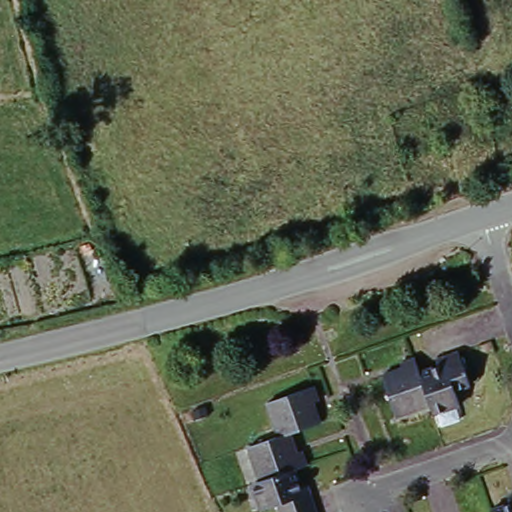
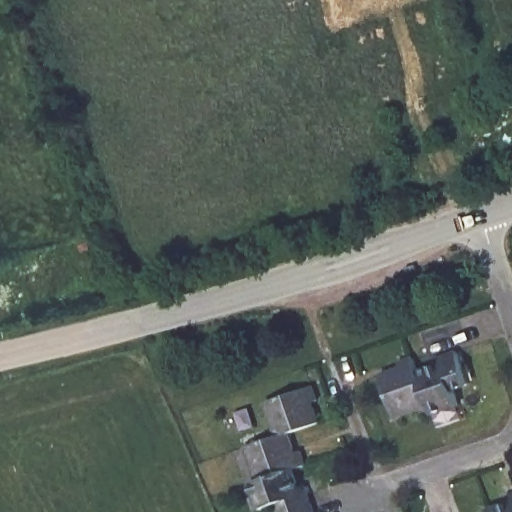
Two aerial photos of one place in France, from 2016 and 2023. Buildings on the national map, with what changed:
unchanged [(469,386),(454,393),(458,406),(433,415),(429,407),(397,417),(381,377),(401,370),(401,363),(414,360),(419,373),(438,366),(436,360),(458,352),(469,386)]
unchanged [(317,403),(310,407),(315,424),(286,434),(292,450),(299,448),(304,465),(292,470),(298,487),(306,486),(315,512),(278,512),(275,506),(260,511),(251,485),(258,482),(246,448),(277,436),(266,402),(311,387),(317,403)]
unchanged [(507,506),(506,502),(512,501),(512,512),(493,512),(507,506)]

